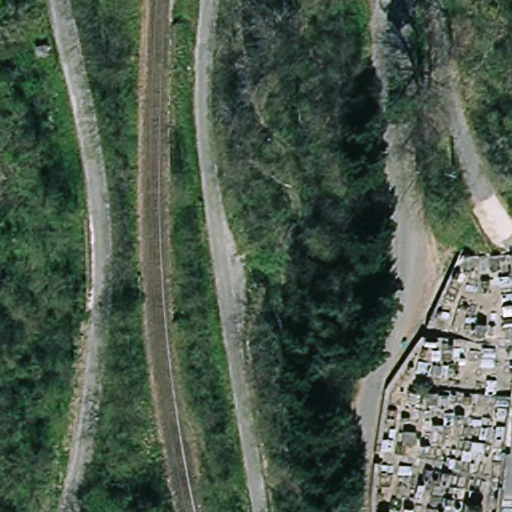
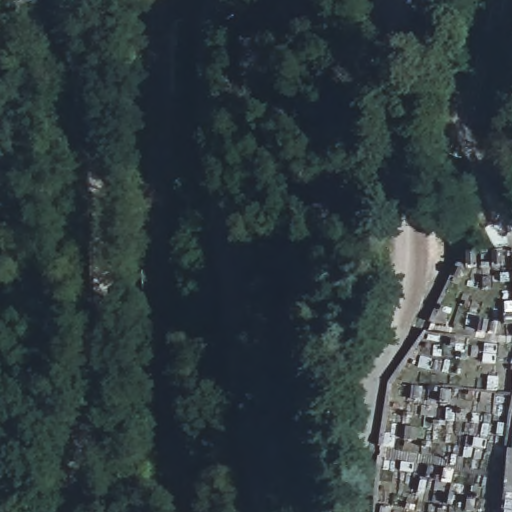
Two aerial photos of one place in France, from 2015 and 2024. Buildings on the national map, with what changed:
unchanged [(42,42),(40,32),(52,30),(52,42),(42,42)]

